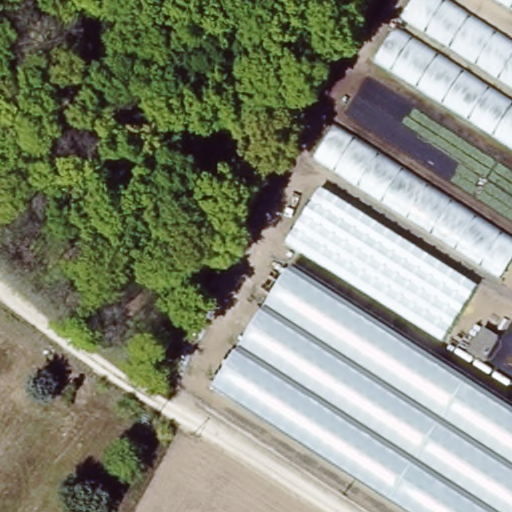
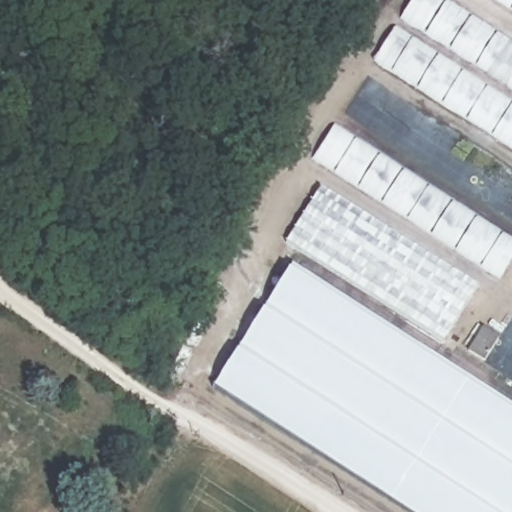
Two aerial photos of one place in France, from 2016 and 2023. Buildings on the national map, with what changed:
unchanged [(413,0),(512,0),(512,291),(313,155),(413,0)]
unchanged [(478,295),(441,348),(287,245),(323,192),(478,295)]
unchanged [(512,512),(410,512),(213,385),(288,265),(512,406),(512,512)]

